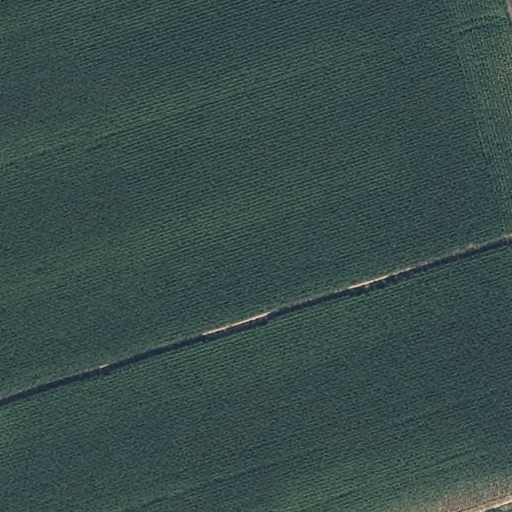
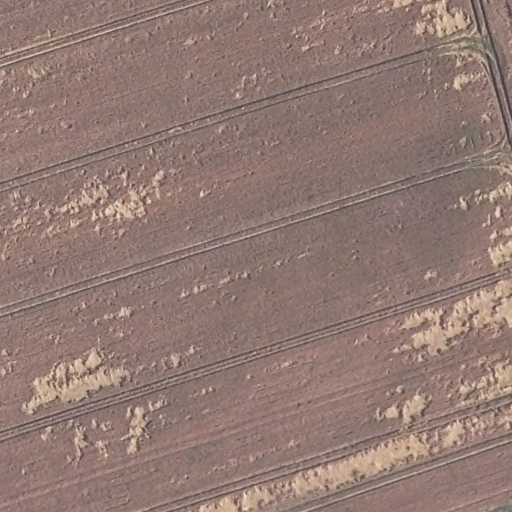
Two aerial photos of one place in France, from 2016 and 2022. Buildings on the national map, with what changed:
[]

